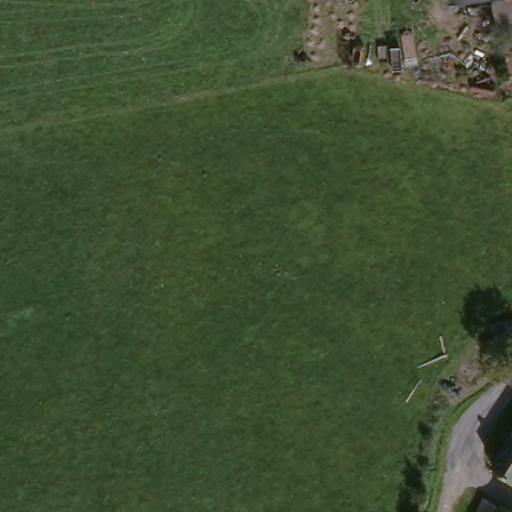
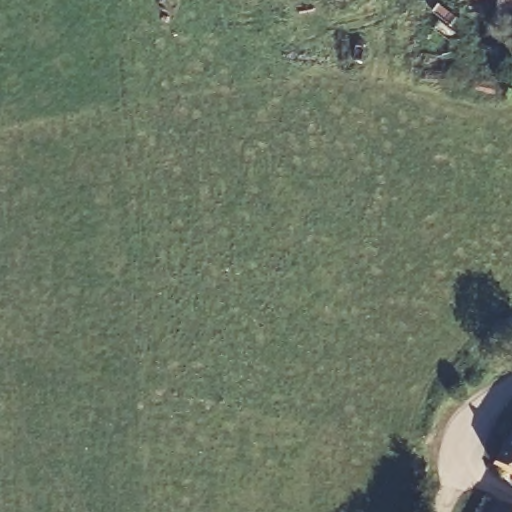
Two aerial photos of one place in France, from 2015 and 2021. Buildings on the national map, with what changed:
unchanged [(503,29),(497,0),(512,0),(512,28),(503,29)]
unchanged [(491,472),(512,432),(512,484),(491,472)]
unchanged [(481,512),(483,507),(487,498),(512,509),(512,512),(481,512)]

